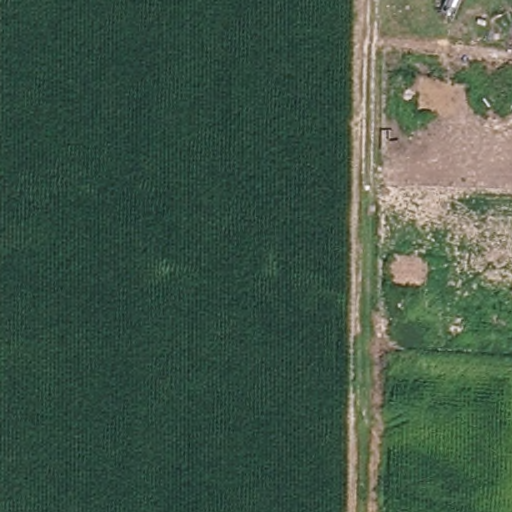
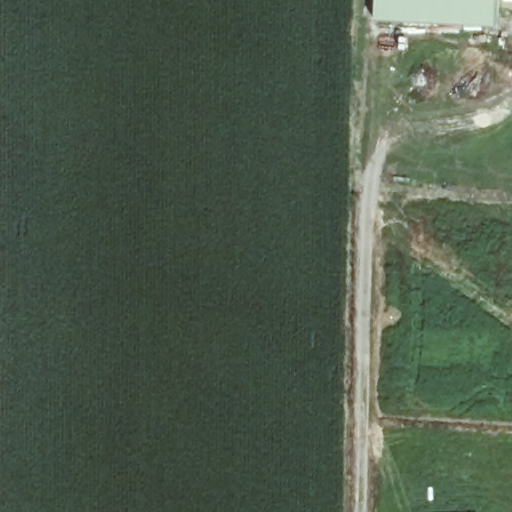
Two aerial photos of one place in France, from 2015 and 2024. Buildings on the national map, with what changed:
new [(375,0),(499,0),(497,31),(445,28),(373,22),(375,0)]

